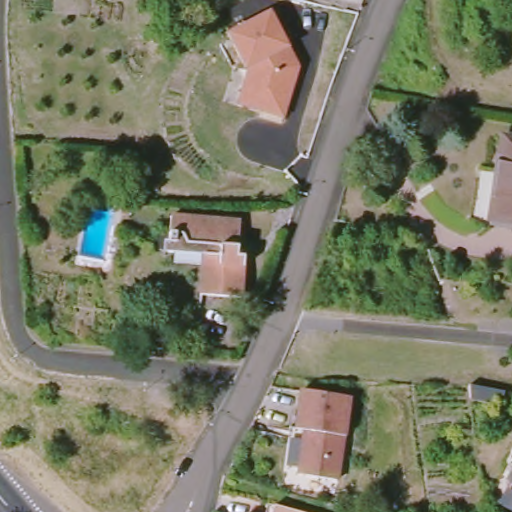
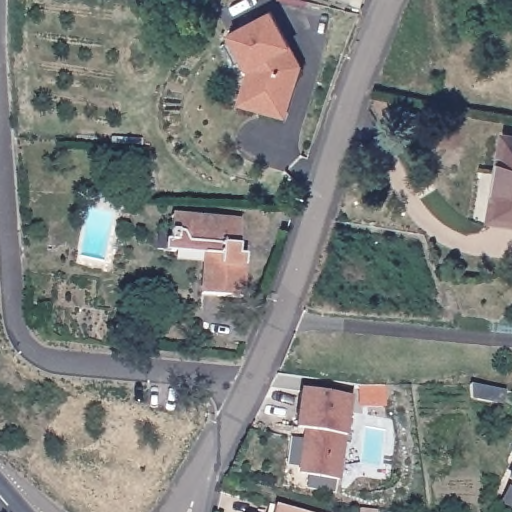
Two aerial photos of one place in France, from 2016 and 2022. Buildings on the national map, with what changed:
unchanged [(236,102),(247,67),(225,30),(270,8),(290,45),(300,66),(285,116),(236,102)]
unchanged [(498,131),(512,133),(512,219),(485,215),(498,131)]
unchanged [(233,252),(239,252),(236,293),(196,291),(200,250),(159,248),(160,237),(165,237),(166,212),(236,217),(233,252)]
unchanged [(498,390),(496,404),(471,399),(470,385),(498,390)]
unchanged [(300,425),(291,424),(297,388),(344,395),(332,476),(292,470),(300,425)]
unchanged [(495,497),(505,474),(503,473),(510,458),(505,456),(512,443),(512,505),(495,497)]
unchanged [(269,507),(290,512),(268,512),(269,507)]
unchanged [(359,509),(375,512),(359,512),(359,509)]

